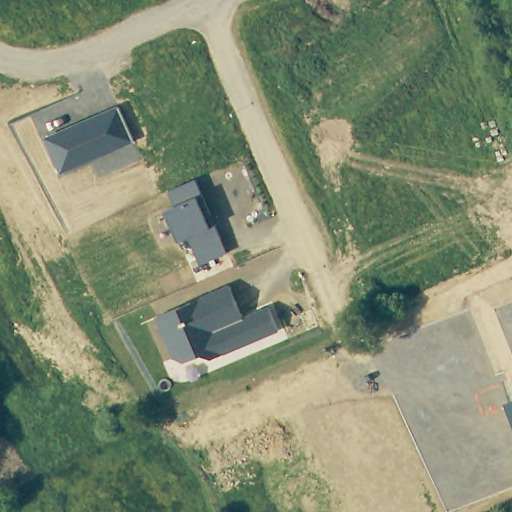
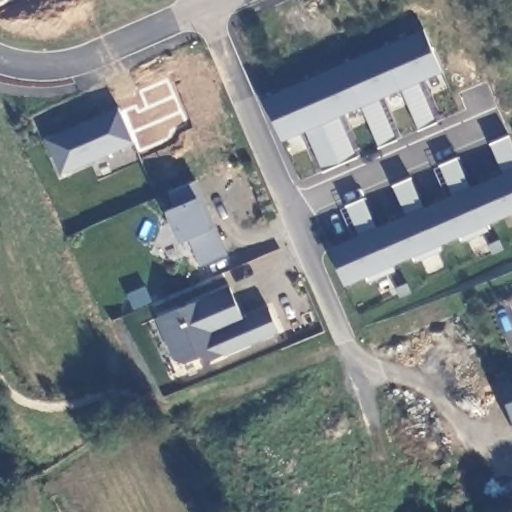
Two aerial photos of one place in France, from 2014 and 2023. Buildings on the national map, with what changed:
new [(420,81),(436,123),(419,130),(402,89),(380,99),(400,141),(379,149),(362,106),(340,115),(359,156),(324,172),(305,130),(281,140),(263,98),(423,30),(440,73),(420,81)]
unchanged [(133,146),(61,176),(45,140),(118,109),(133,146)]
new [(328,250),(358,235),(345,206),(364,198),(376,228),(405,216),(393,187),(411,178),(424,209),(452,197),(439,166),(456,159),(468,189),(502,175),(490,142),(508,136),(512,146),(512,215),(345,286),(328,250)]
unchanged [(201,196),(198,200),(210,230),(216,227),(227,255),(200,266),(188,238),(178,243),(166,210),(175,206),(168,193),(195,181),(201,196)]
unchanged [(243,320),(269,309),(278,334),(214,362),(201,358),(185,365),(173,358),(157,318),(193,302),(229,288),(243,320)]
unchanged [(512,401),(512,420),(505,404),(512,401)]

